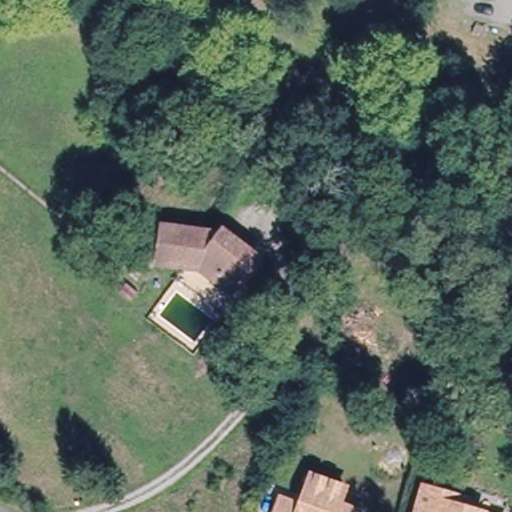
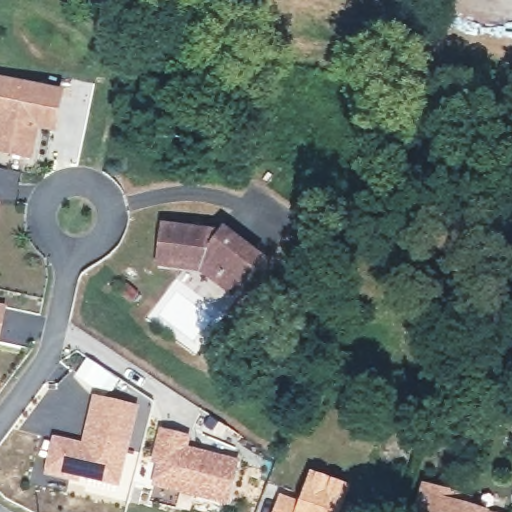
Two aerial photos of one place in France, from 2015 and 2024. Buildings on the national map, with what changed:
new [(29,159),(26,159),(27,156),(0,151),(0,80),(61,92),(56,115),(53,130),(36,126),(29,159)]
unchanged [(219,235),(222,227),(264,247),(250,276),(233,268),(230,274),(211,265),(209,273),(165,270),(168,231),(219,235)]
new [(0,314),(0,306),(1,306),(0,314)]
new [(120,485),(81,477),(80,481),(44,473),(51,435),(81,440),(92,395),(140,405),(120,485)]
new [(161,431),(180,436),(177,447),(236,462),(226,502),(154,484),(159,462),(153,461),(161,431)]
unchanged [(281,497),(299,504),(311,473),(345,486),(338,505),(355,512),(275,512),(281,497)]
unchanged [(427,487),(470,503),(467,511),(468,512),(418,512),(427,487)]

